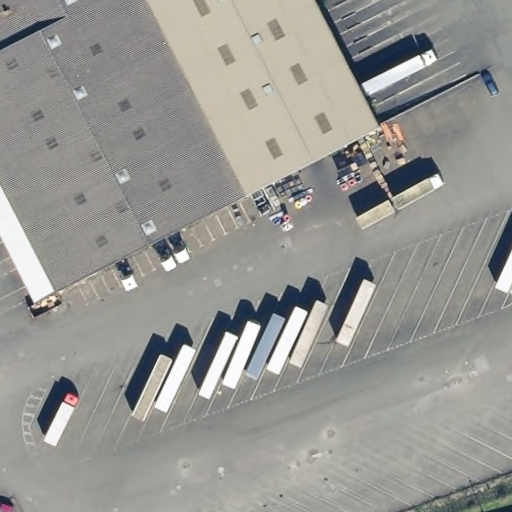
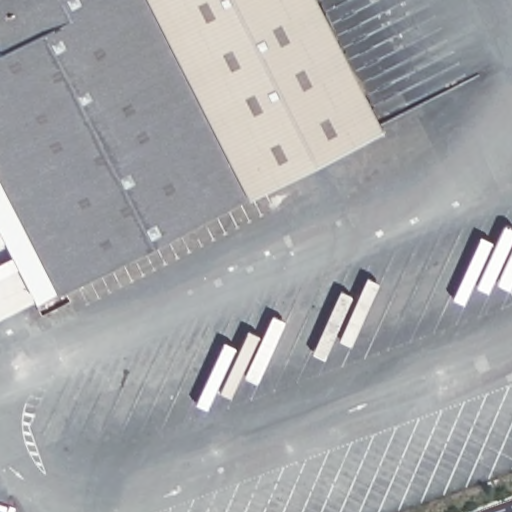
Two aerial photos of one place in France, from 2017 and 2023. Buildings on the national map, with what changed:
unchanged [(148,0),(246,195),(58,292),(40,300),(0,222),(0,0),(148,0)]
unchanged [(320,0),(384,124),(246,195),(148,0),(320,0)]

